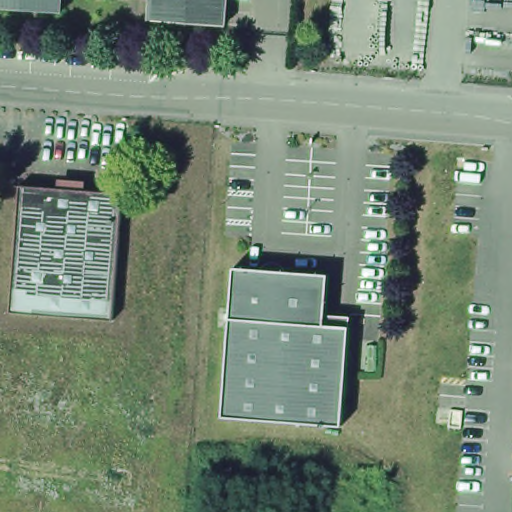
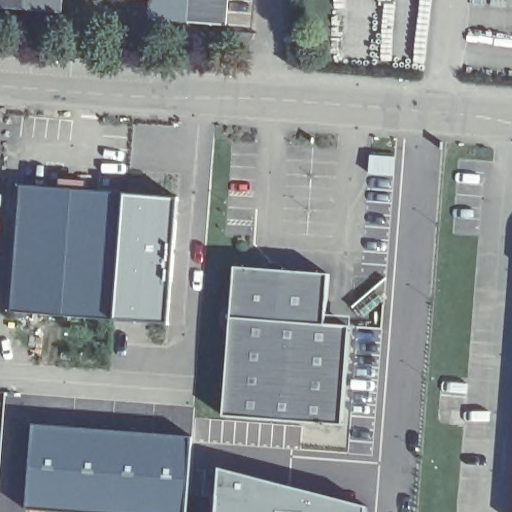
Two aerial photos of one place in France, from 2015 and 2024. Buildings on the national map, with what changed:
unchanged [(0,10),(0,0),(66,0),(65,14),(0,10)]
unchanged [(156,0),(232,0),(231,27),(154,20),(156,0)]
unchanged [(107,319),(3,311),(12,183),(116,190),(107,319)]
new [(107,319),(116,192),(178,199),(167,325),(107,319)]
unchanged [(320,328),(348,330),(340,430),(217,420),(225,321),(232,269),(325,277),(320,328)]
new [(189,437),(189,440),(187,512),(55,512),(27,510),(33,424),(189,437)]
new [(362,508),(361,512),(211,512),(215,466),(362,508)]
unchanged [(512,467),(512,512),(509,512),(512,467)]

